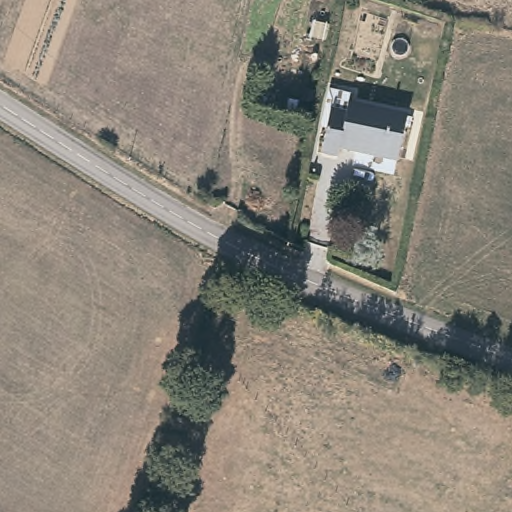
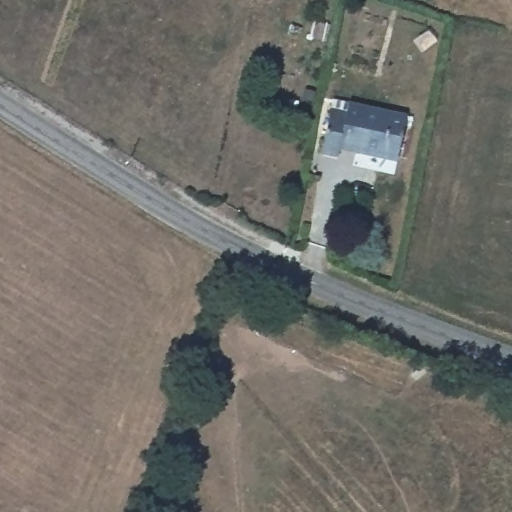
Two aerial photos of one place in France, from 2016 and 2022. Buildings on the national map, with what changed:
unchanged [(407,116),(397,159),(343,146),(340,157),(322,155),(334,99),(407,116)]

